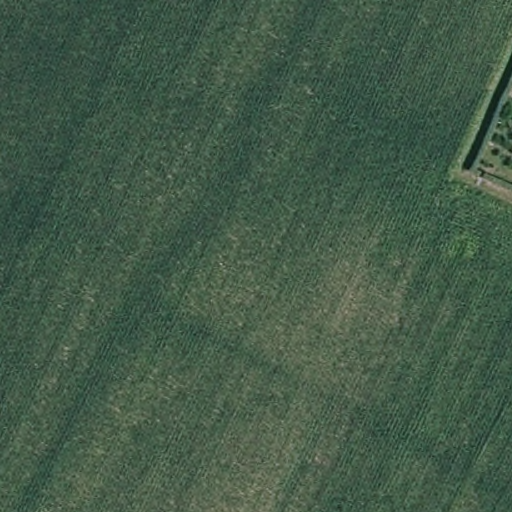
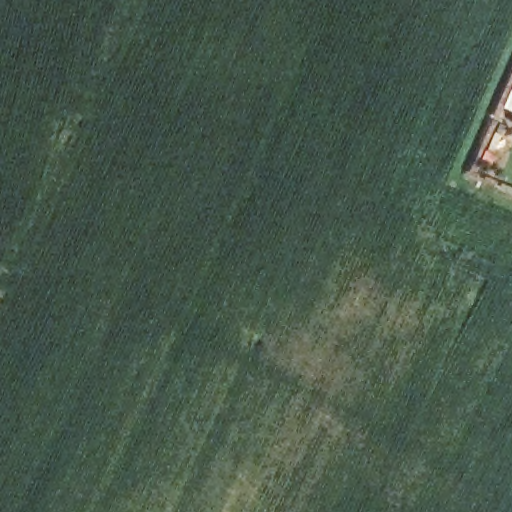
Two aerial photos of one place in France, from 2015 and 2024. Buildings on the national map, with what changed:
unchanged [(510,54),(512,49),(512,55),(510,54)]

